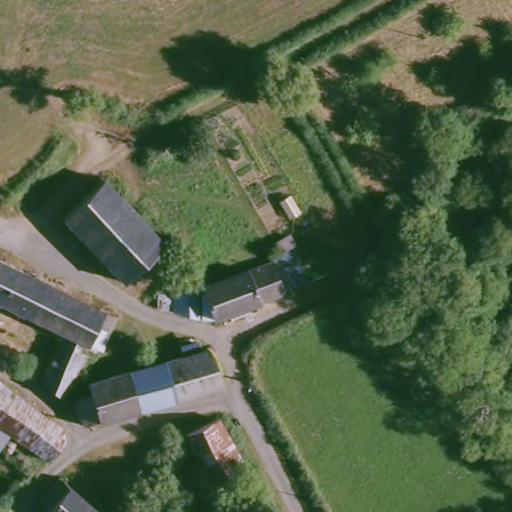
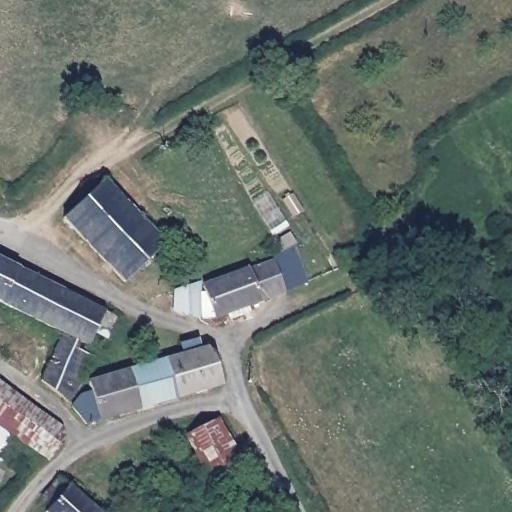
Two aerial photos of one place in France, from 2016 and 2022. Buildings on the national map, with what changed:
unchanged [(101,180),(161,245),(121,283),(89,251),(60,219),(101,180)]
unchanged [(210,290),(278,262),(276,257),(285,252),(289,250),(298,242),(311,277),(306,280),(290,289),(210,325),(182,312),(181,294),(208,283),(210,290)]
unchanged [(420,280),(403,285),(395,265),(409,258),(420,280)]
unchanged [(0,303),(0,265),(18,273),(3,304),(0,303)]
unchanged [(86,342),(71,371),(80,377),(65,402),(38,380),(60,331),(6,305),(3,304),(18,273),(95,310),(113,318),(105,334),(97,348),(86,342)]
unchanged [(206,350),(212,357),(220,386),(173,399),(163,360),(206,350)]
unchanged [(173,399),(83,423),(65,402),(85,382),(137,367),(163,360),(173,399)]
unchanged [(0,387),(54,422),(62,439),(49,457),(10,432),(0,425),(0,387)]
unchanged [(214,491),(185,437),(216,420),(246,471),(214,491)]
unchanged [(47,510),(51,505),(48,501),(63,485),(93,512),(48,512),(47,510)]

